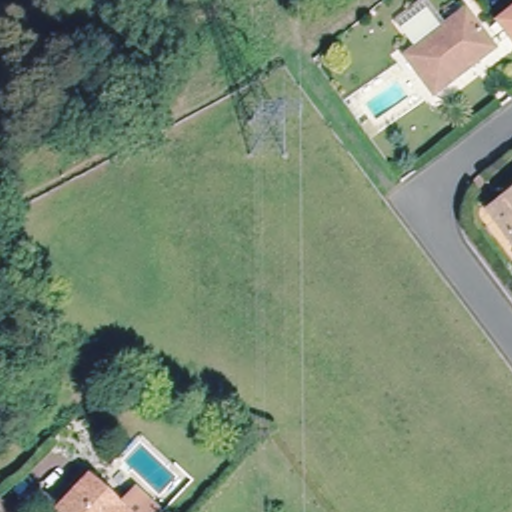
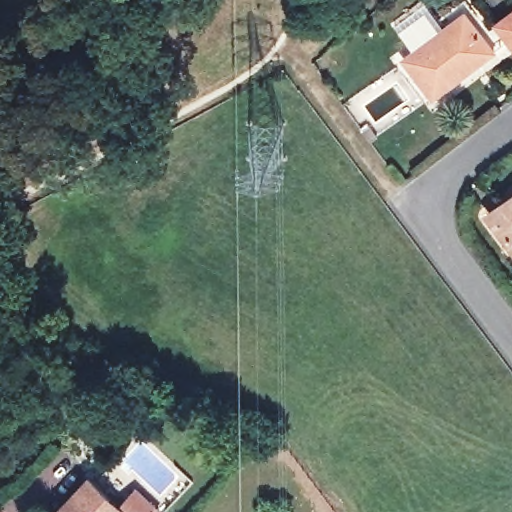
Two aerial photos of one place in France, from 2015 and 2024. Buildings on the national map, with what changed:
unchanged [(512,45),(508,40),(496,24),(512,11),(512,45)]
unchanged [(464,20),(492,57),(432,102),(404,65),(464,20)]
unchanged [(361,130),(367,125),(377,137),(371,142),(361,130)]
unchanged [(512,207),(512,251),(490,222),(512,207)]
unchanged [(84,478),(87,481),(115,507),(132,490),(152,510),(150,512),(56,512),(53,510),(84,478)]

